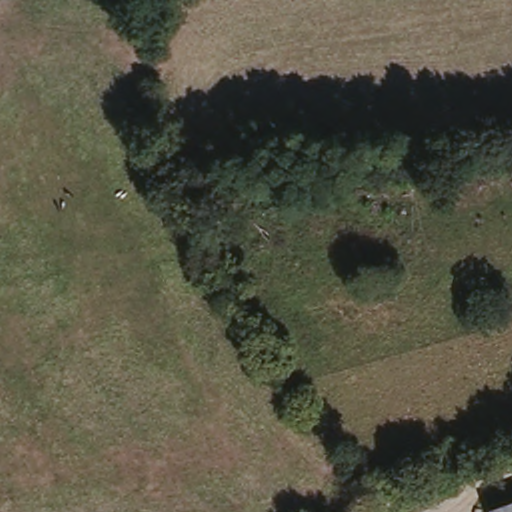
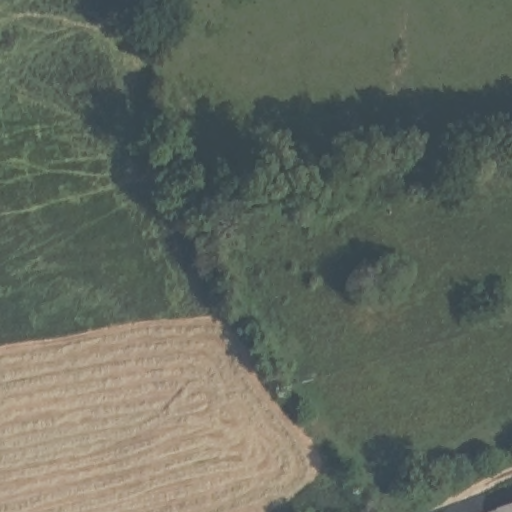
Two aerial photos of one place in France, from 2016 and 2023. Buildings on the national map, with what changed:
unchanged [(512,512),(497,512),(512,506),(512,512)]

